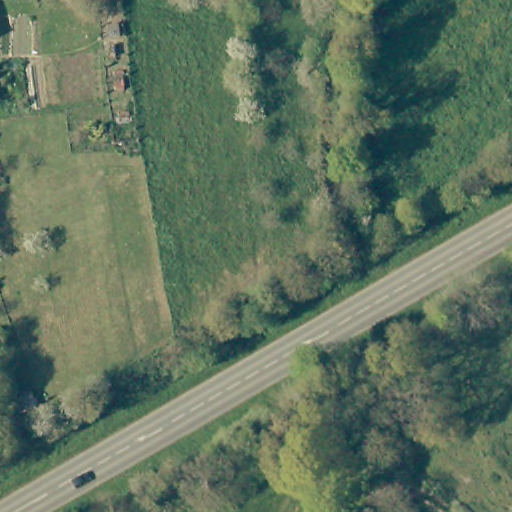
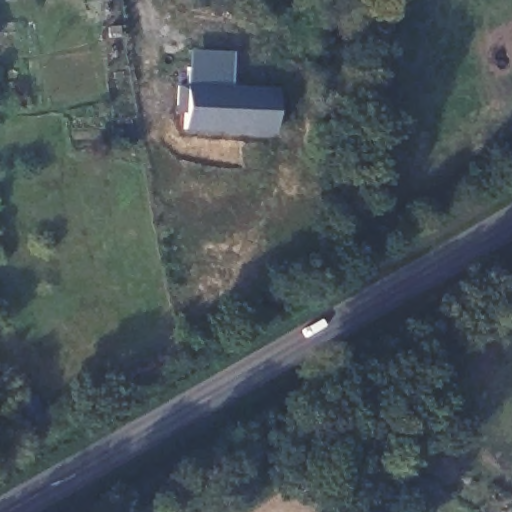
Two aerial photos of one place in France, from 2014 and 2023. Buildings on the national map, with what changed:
new [(185,114),(174,115),(176,85),(186,85),(190,51),(234,53),(231,87),(279,90),(276,135),(186,130),(185,114)]

